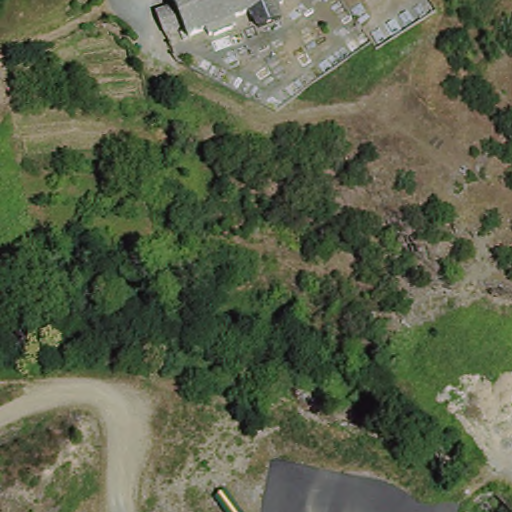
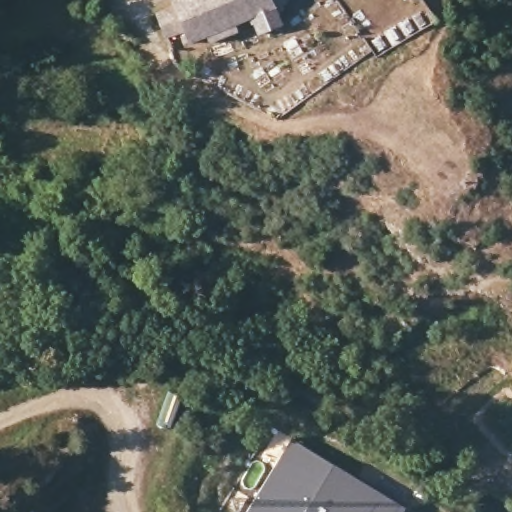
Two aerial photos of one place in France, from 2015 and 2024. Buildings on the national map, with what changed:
unchanged [(156,15),(172,7),(170,0),(284,0),(282,3),(283,10),(277,13),(280,27),(255,38),(249,22),(188,48),(183,34),(166,40),(156,15)]
new [(248,512),(292,439),(407,508),(405,512),(248,512)]

